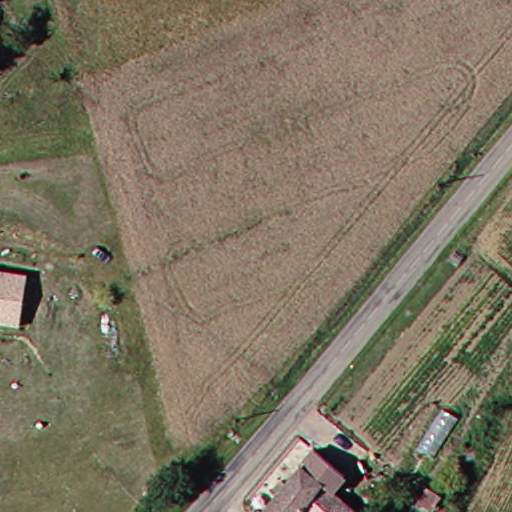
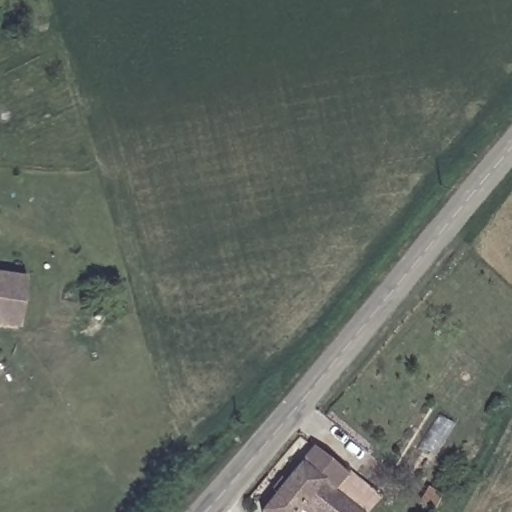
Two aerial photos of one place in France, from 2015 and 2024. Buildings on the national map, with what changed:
unchanged [(40,277),(35,308),(31,329),(0,322),(0,270),(9,271),(40,277)]
unchanged [(351,479),(340,493),(364,512),(269,512),(322,453),(351,479)]

